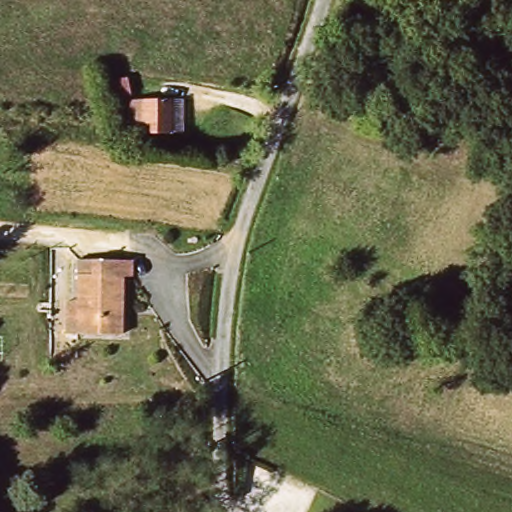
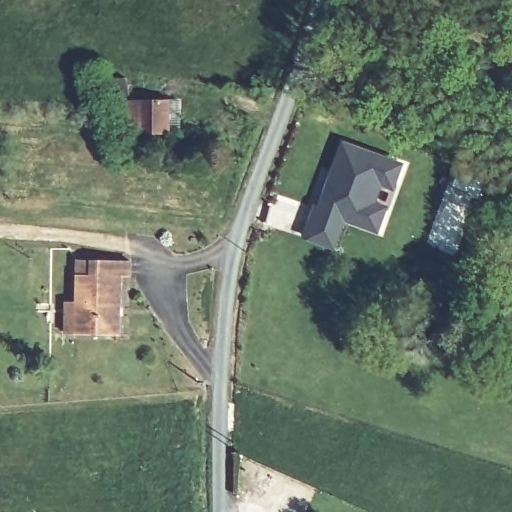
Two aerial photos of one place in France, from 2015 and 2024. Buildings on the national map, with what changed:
unchanged [(175,130),(150,130),(147,125),(134,125),(132,103),(173,101),(175,130)]
new [(323,205),(323,207),(333,181),(337,169),(348,142),(406,164),(397,187),(385,182),(377,202),(389,206),(381,229),(347,216),(336,244),(308,233),(319,204),(323,205)]
unchanged [(74,305),(86,306),(89,255),(135,257),(134,277),(127,278),(123,337),(84,335),(73,334),(74,305)]

